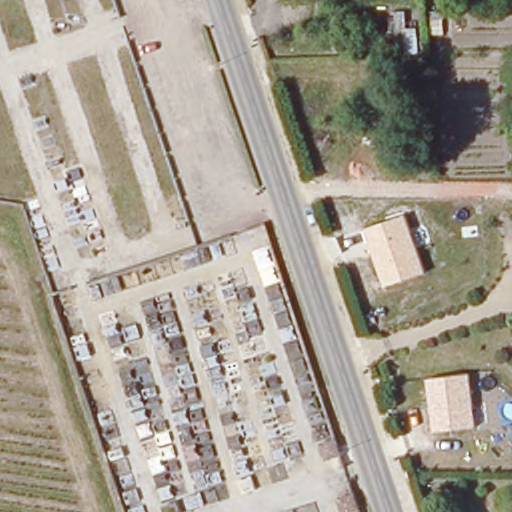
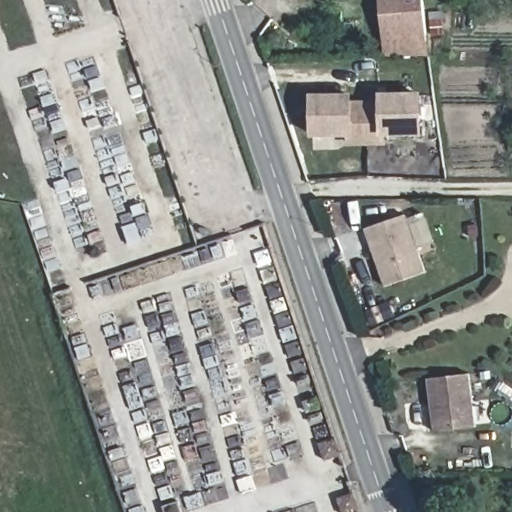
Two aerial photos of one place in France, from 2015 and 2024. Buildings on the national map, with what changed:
new [(379,0),(423,0),(429,56),(385,59),(379,0)]
new [(347,145),(348,137),(310,137),(309,95),(352,93),(352,100),(378,100),(378,94),(422,92),(424,136),(386,136),(386,145),(347,145)]
unchanged [(389,286),(367,227),(408,215),(428,272),(389,286)]
unchanged [(476,426),(435,431),(428,378),(470,373),(476,426)]

